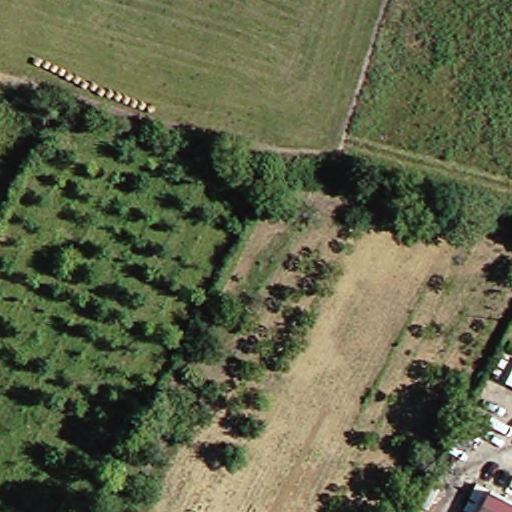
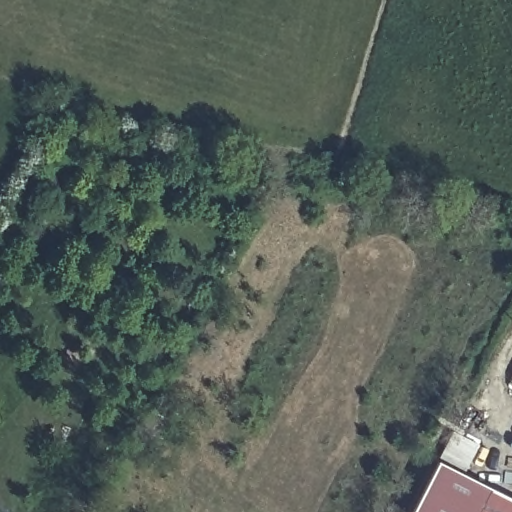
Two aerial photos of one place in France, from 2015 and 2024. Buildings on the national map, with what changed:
new [(493,487),(481,512),(413,512),(439,462),(493,487)]
unchanged [(512,512),(481,512),(493,487),(512,496),(512,512)]

